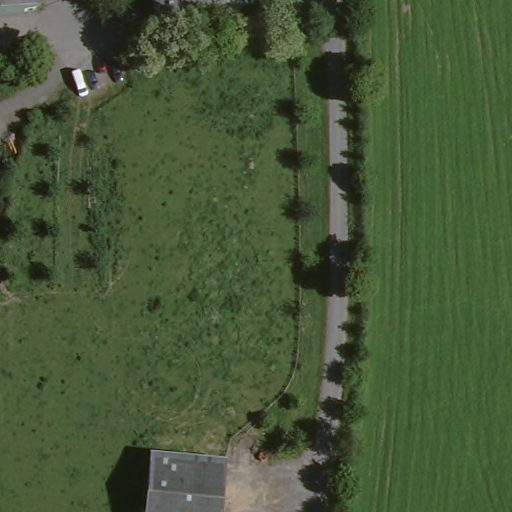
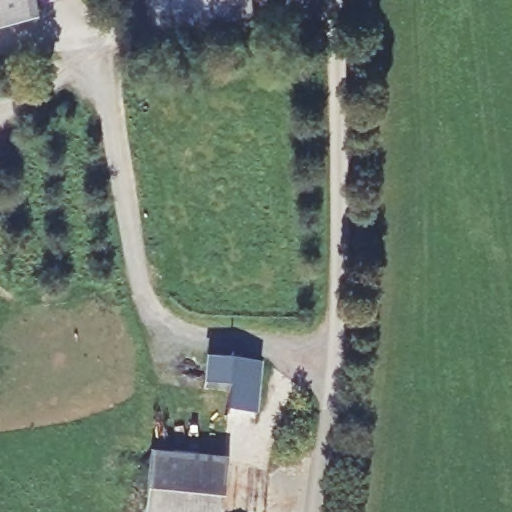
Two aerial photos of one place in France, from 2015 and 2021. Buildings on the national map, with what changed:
unchanged [(0,20),(0,0),(34,0),(36,15),(0,20)]
unchanged [(250,13),(149,26),(146,0),(249,0),(250,13)]
new [(228,416),(230,391),(203,388),(206,362),(260,367),(256,417),(228,416)]
unchanged [(229,512),(152,512),(156,465),(232,470),(229,512)]

